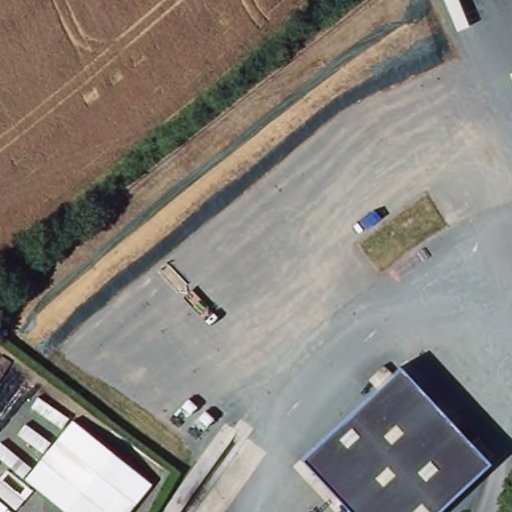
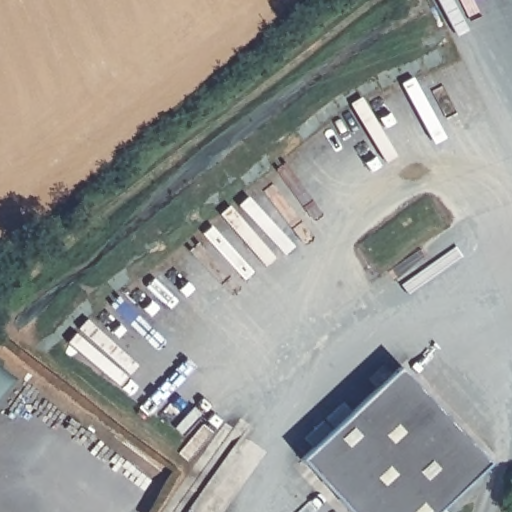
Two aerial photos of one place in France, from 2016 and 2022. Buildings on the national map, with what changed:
unchanged [(489,466),(440,512),(358,512),(304,454),(399,366),(489,466)]
new [(67,512),(25,478),(72,421),(151,485),(129,512),(67,512)]

